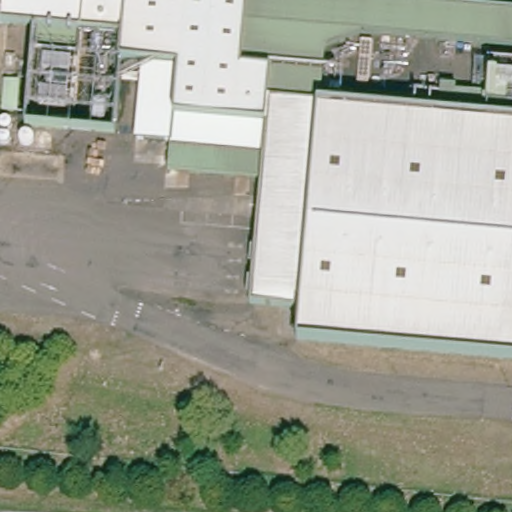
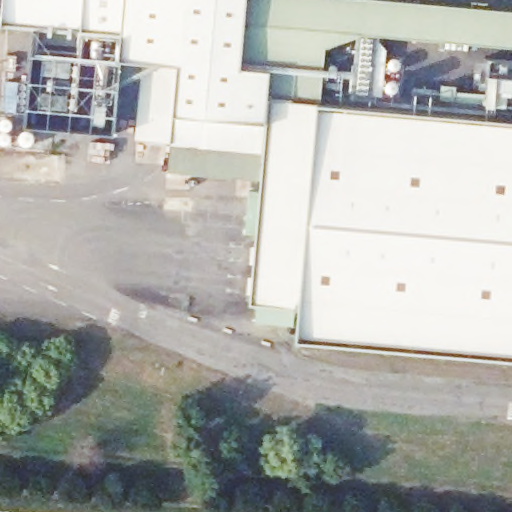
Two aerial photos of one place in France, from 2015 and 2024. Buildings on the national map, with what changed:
unchanged [(419,4),(512,13),(512,364),(306,346),(302,345),(304,312),(255,308),(268,157),(174,149),(176,120),(141,117),(148,39),(37,29),(0,26),(0,0),(378,0),(419,4)]

